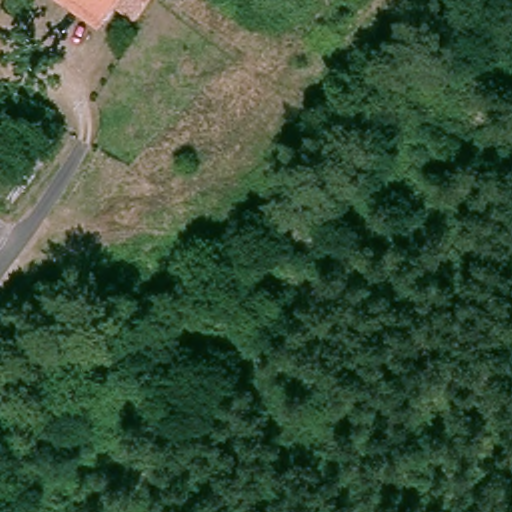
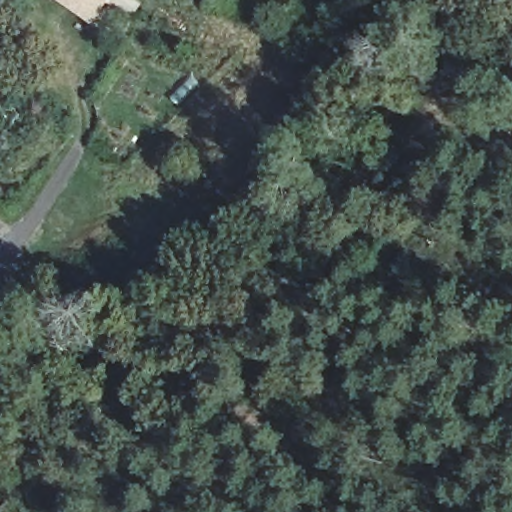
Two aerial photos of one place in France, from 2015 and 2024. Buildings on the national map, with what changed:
unchanged [(63,0),(88,0),(81,11),(63,0)]
unchanged [(81,11),(88,0),(134,0),(116,32),(81,11)]

